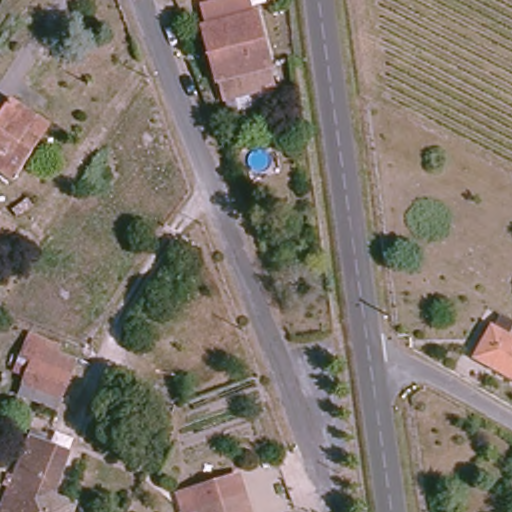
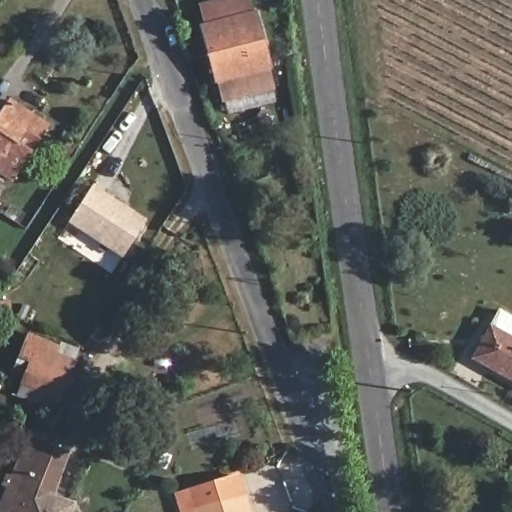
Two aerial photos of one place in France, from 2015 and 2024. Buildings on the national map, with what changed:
unchanged [(268,71),(272,88),(273,92),(225,104),(224,100),(220,83),(211,85),(199,32),(215,28),(210,8),(246,0),(255,0),(259,17),(272,70),(268,71)]
unchanged [(25,141),(36,148),(17,179),(0,168),(0,115),(10,99),(40,117),(25,141)]
new [(97,185),(151,221),(127,255),(75,221),(97,185)]
unchanged [(475,359),(491,328),(512,339),(512,379),(475,359)]
unchanged [(31,332),(62,344),(60,349),(79,358),(59,409),(17,396),(22,378),(13,376),(31,332)]
unchanged [(50,441),(49,446),(78,459),(58,506),(72,512),(3,512),(37,435),(50,441)]
unchanged [(248,488),(255,512),(186,512),(185,506),(248,488)]

